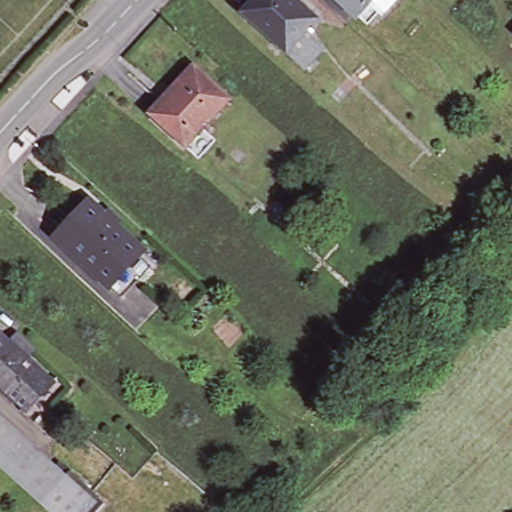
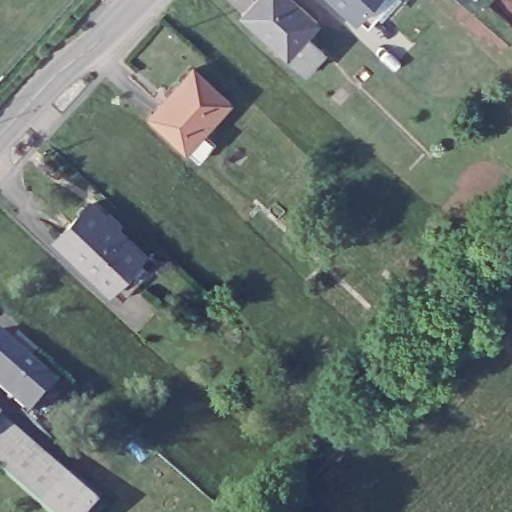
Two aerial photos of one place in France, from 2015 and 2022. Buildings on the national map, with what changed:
unchanged [(302,72),(282,54),(237,14),(249,0),(292,0),(315,21),(302,34),(322,51),(302,72)]
unchanged [(362,25),(333,0),(385,0),(362,25)]
unchanged [(195,71),(232,106),(187,154),(150,119),(195,71)]
unchanged [(117,292),(104,280),(52,231),(85,196),(100,210),(98,212),(106,220),(108,217),(138,246),(134,250),(147,262),(117,292)]
unchanged [(25,364),(50,387),(25,414),(0,391),(0,337),(28,361),(25,364)]
unchanged [(38,503),(0,468),(0,417),(64,474),(38,503)]
unchanged [(68,470),(95,495),(79,512),(49,512),(38,503),(64,474),(68,470)]

